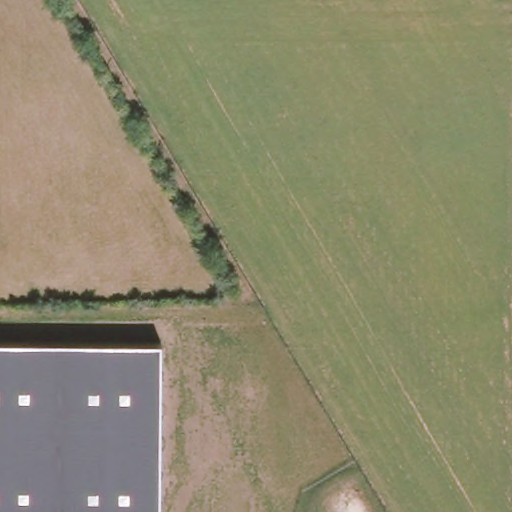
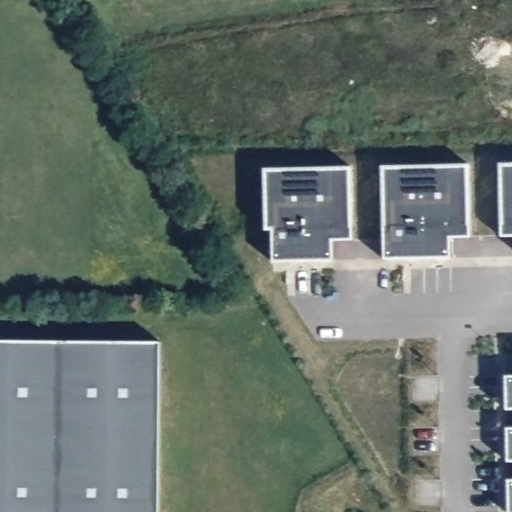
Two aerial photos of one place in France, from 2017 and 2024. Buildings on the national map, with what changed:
new [(502,236),(499,164),(512,163),(512,235),(502,236)]
new [(469,164),(470,236),(450,236),(449,256),(384,257),(382,165),(469,164)]
new [(353,166),(353,239),(333,239),(333,261),(273,262),(272,230),(267,230),(264,168),(353,166)]
unchanged [(160,512),(0,512),(0,341),(161,341),(160,512)]
new [(505,376),(512,376),(512,409),(506,409),(505,376)]
new [(507,428),(512,428),(512,461),(507,461),(507,428)]
new [(512,478),(512,512),(507,512),(507,478),(512,478)]

